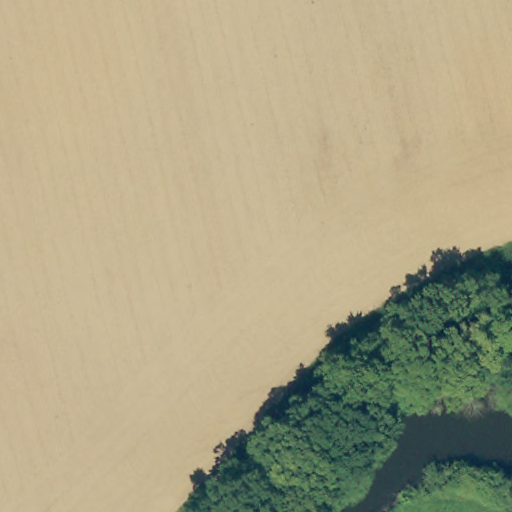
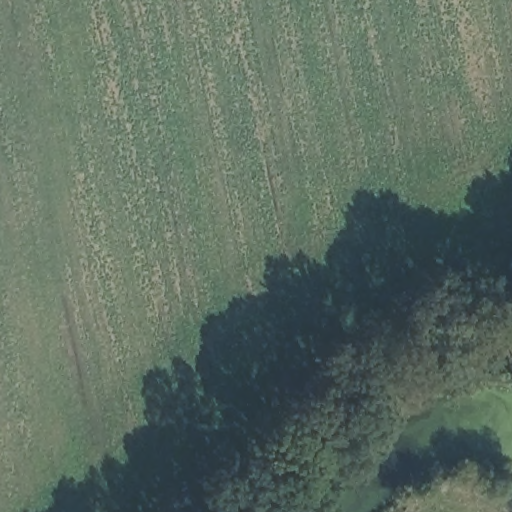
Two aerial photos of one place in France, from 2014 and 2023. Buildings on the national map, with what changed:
[]

